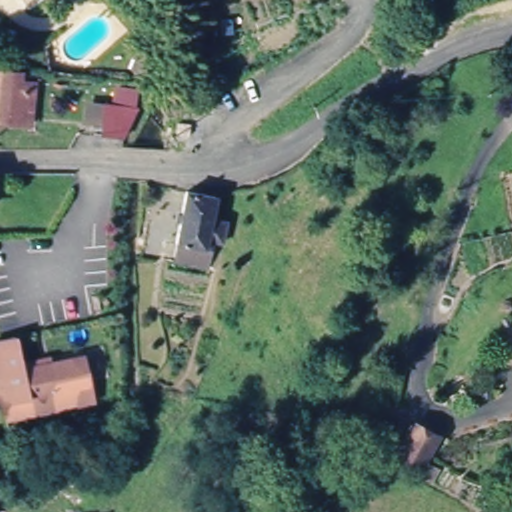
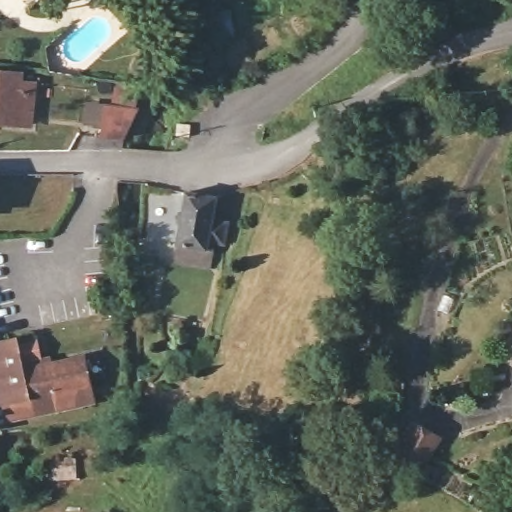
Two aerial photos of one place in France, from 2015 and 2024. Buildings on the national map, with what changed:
unchanged [(29,0),(50,0),(37,10),(29,0)]
unchanged [(0,121),(0,86),(32,89),(30,124),(0,121)]
unchanged [(189,118),(187,104),(201,102),(204,116),(189,118)]
unchanged [(109,127),(111,106),(141,108),(132,129),(109,127)]
unchanged [(172,262),(177,244),(190,194),(223,201),(218,224),(232,227),(227,250),(222,249),(207,246),(206,252),(201,270),(172,262)]
unchanged [(17,353),(21,370),(80,357),(84,356),(89,377),(94,402),(9,419),(5,403),(0,404),(0,341),(14,338),(17,353)]
unchanged [(453,448),(436,489),(393,466),(414,431),(453,448)]

